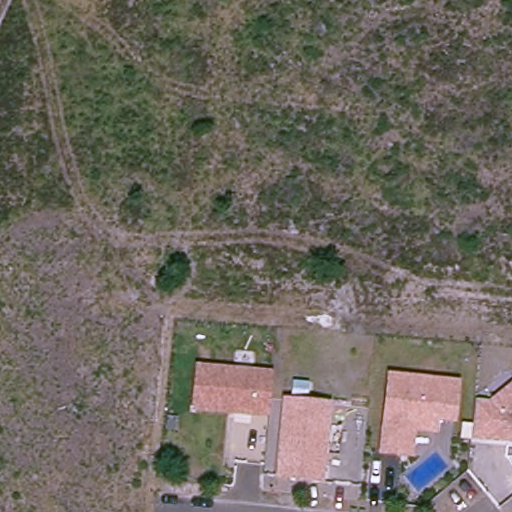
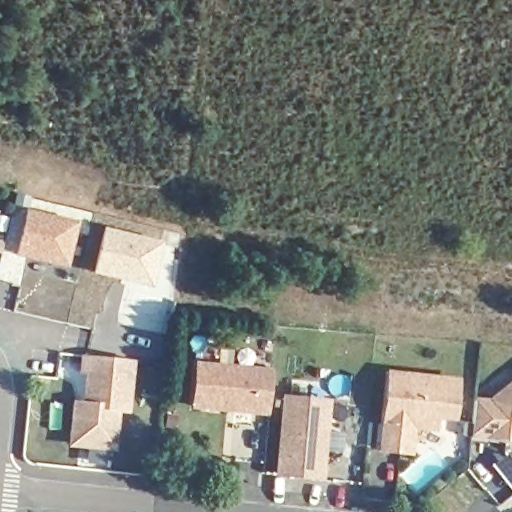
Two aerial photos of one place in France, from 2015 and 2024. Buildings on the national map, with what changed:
new [(29,213),(78,224),(68,267),(19,255),(29,213)]
new [(107,231),(163,244),(155,277),(143,284),(97,273),(107,231)]
new [(135,361),(131,413),(119,412),(116,452),(69,449),(73,401),(83,402),(84,374),(79,374),(80,355),(135,361)]
unchanged [(268,379),(264,414),(189,406),(194,364),(269,372),(268,379)]
unchanged [(401,453),(381,450),(392,373),(459,380),(456,419),(438,417),(437,429),(414,427),(411,454),(401,453)]
unchanged [(511,439),(474,436),(478,402),(493,403),(512,387),(512,440),(511,439)]
unchanged [(323,481),(275,474),(284,396),(331,402),(323,481)]

